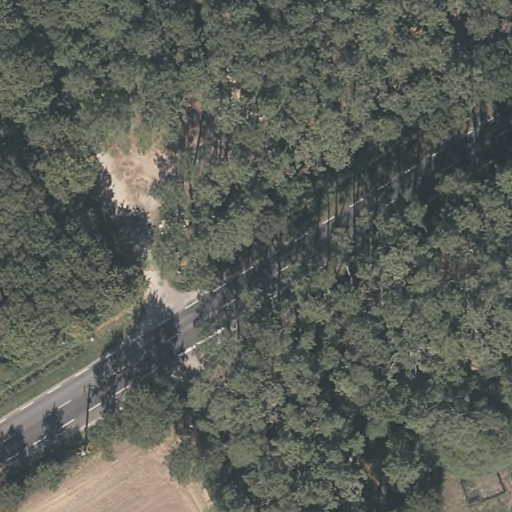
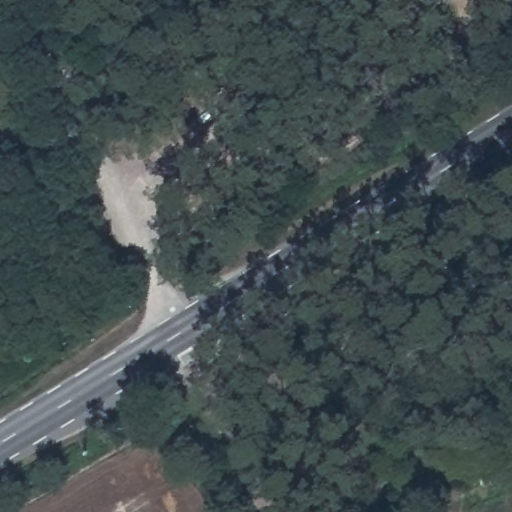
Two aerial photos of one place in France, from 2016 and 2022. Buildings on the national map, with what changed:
unchanged [(95,327),(82,335),(74,322),(87,313),(95,327)]

